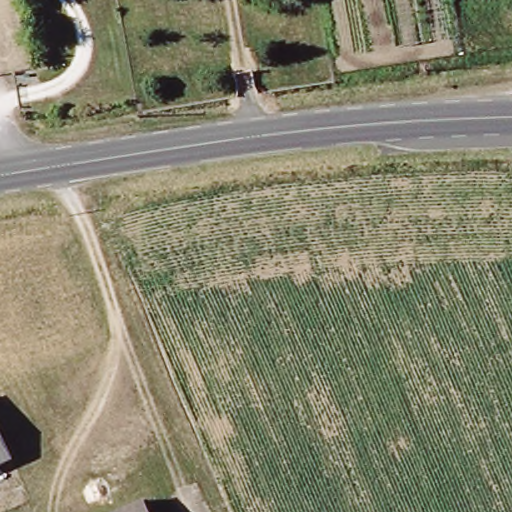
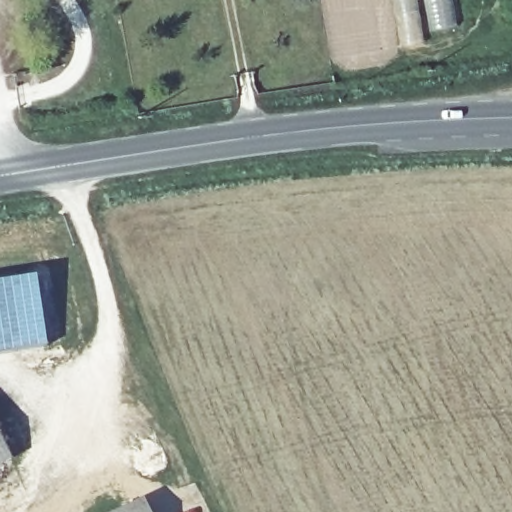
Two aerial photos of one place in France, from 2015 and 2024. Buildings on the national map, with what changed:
demolished [(421,0),(448,0),(454,36),(428,41),(421,0)]
new [(51,344),(0,352),(0,284),(41,278),(51,344)]
unchanged [(0,469),(0,427),(17,460),(0,469)]
unchanged [(154,512),(125,512),(148,500),(154,512)]

